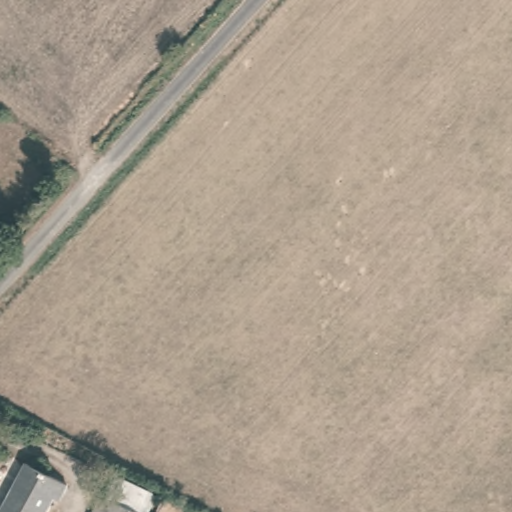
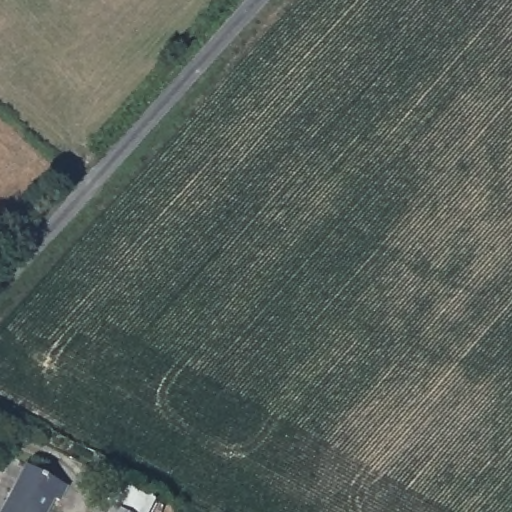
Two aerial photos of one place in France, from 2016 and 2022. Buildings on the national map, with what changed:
unchanged [(45,507),(43,512),(0,512),(0,511),(18,475),(60,496),(53,512),(45,507)]
unchanged [(107,488),(152,511),(152,512),(95,512),(107,488)]

